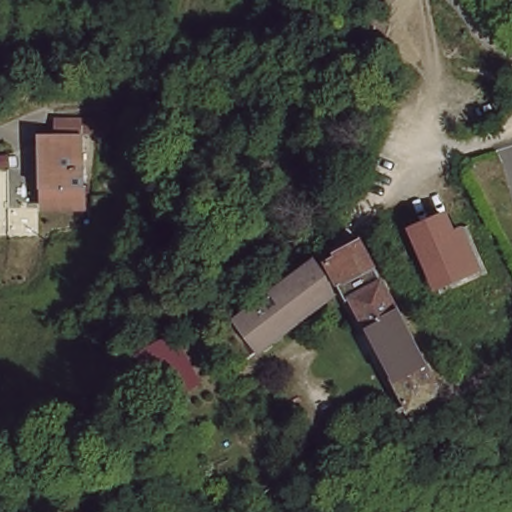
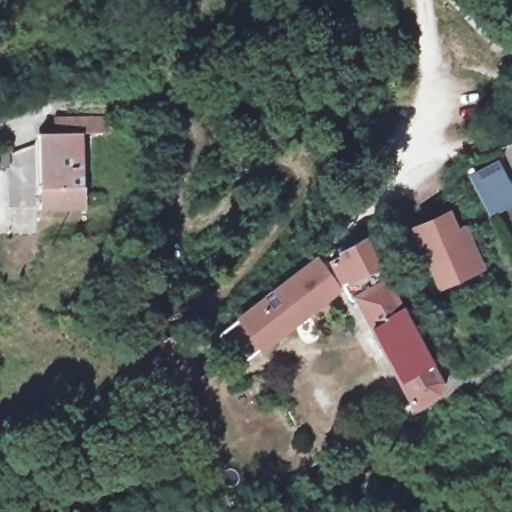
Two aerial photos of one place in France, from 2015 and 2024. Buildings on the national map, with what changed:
unchanged [(39,198),(38,124),(77,124),(78,174),(83,175),(83,197),(39,198)]
new [(512,205),(490,217),(467,176),(496,160),(512,189),(512,205)]
unchanged [(456,229),(466,224),(484,267),(436,288),(412,227),(449,210),(456,229)]
unchanged [(404,407),(350,298),(344,302),(324,261),(343,253),(339,249),(360,239),(365,249),(434,381),(430,393),(404,407)]
unchanged [(241,313),(313,261),(334,291),(236,364),(213,335),(216,332),(241,313)]
unchanged [(163,340),(184,330),(208,373),(171,395),(149,350),(163,340)]
unchanged [(186,412),(188,418),(178,423),(175,417),(186,412)]

